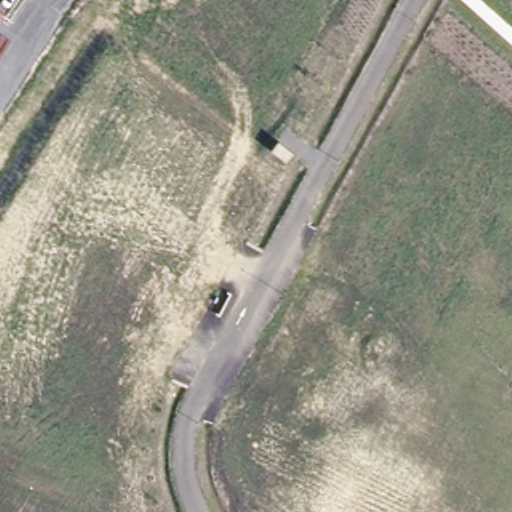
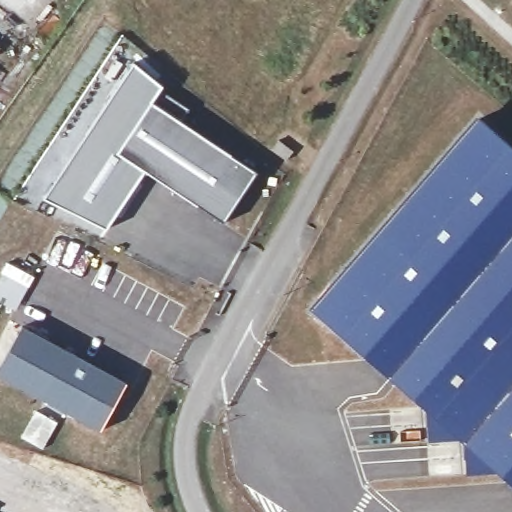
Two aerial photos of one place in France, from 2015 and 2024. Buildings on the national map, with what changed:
new [(43,199),(134,62),(163,86),(159,91),(153,103),(119,155),(144,172),(108,229),(43,199)]
unchanged [(188,111),(181,122),(258,173),(222,225),(119,155),(153,103),(159,91),(188,111)]
new [(512,146),(512,480),(503,472),(469,473),(468,441),(465,439),(431,441),(429,408),(314,307),(479,118),(512,146)]
new [(277,140),(292,151),(286,160),(270,149),(277,140)]
new [(16,311),(0,303),(0,277),(7,262),(34,276),(16,311)]
new [(100,430),(0,377),(0,367),(21,325),(126,381),(100,430)]
new [(36,410),(58,422),(43,449),(20,437),(36,410)]

